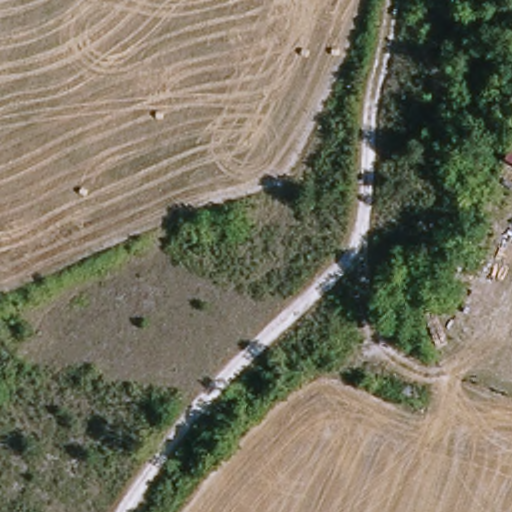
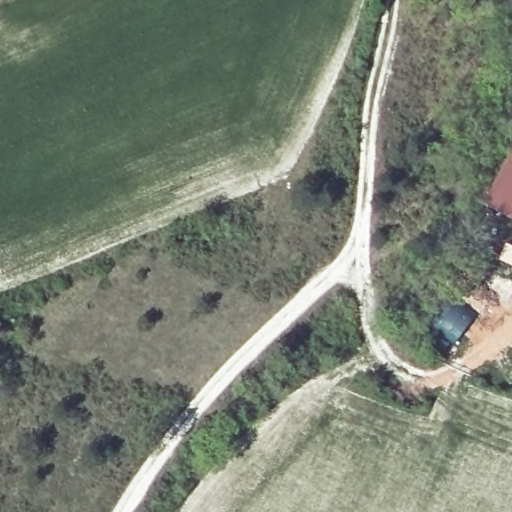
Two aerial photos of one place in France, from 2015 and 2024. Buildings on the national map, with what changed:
unchanged [(490,153),(512,107),(512,164),(490,153)]
new [(479,205),(503,159),(512,164),(512,221),(479,205)]

